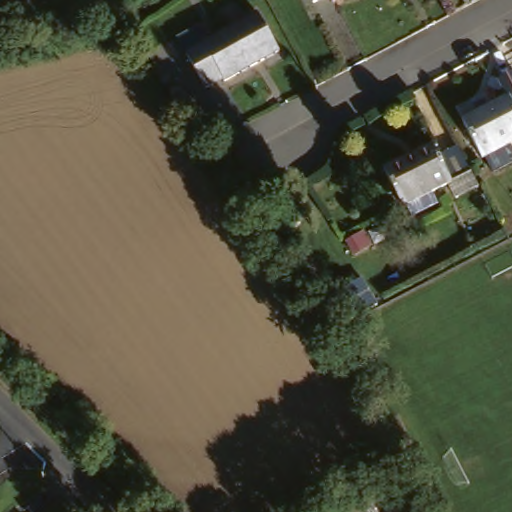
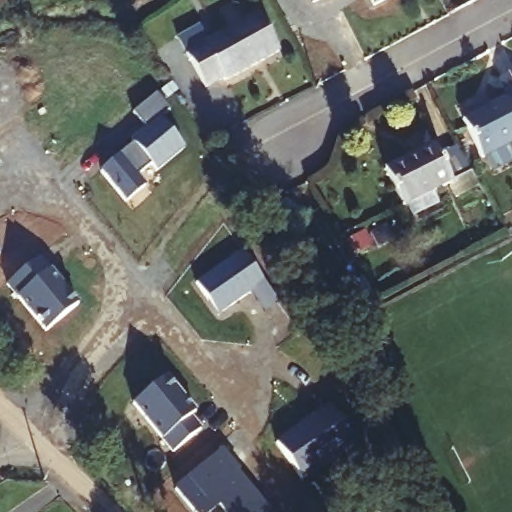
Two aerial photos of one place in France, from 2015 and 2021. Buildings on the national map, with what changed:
unchanged [(264,9),(285,46),(211,86),(191,48),(264,9)]
unchanged [(486,152),(466,115),(508,93),(512,102),(512,139),(486,152)]
unchanged [(389,162),(437,136),(458,175),(439,185),(444,196),(419,208),(413,198),(409,200),(389,162)]
new [(267,310),(252,290),(219,313),(197,282),(243,249),(266,280),(281,300),(267,310)]
new [(38,253),(80,303),(49,330),(6,280),(38,253)]
unchanged [(358,301),(370,295),(384,320),(372,326),(358,301)]
new [(164,375),(195,410),(190,414),(201,426),(174,450),(133,402),(164,375)]
new [(329,402),(355,438),(303,477),(276,441),(329,402)]
new [(221,447),(238,467),(236,469),(273,512),(227,512),(223,507),(217,512),(195,512),(174,487),(221,447)]

